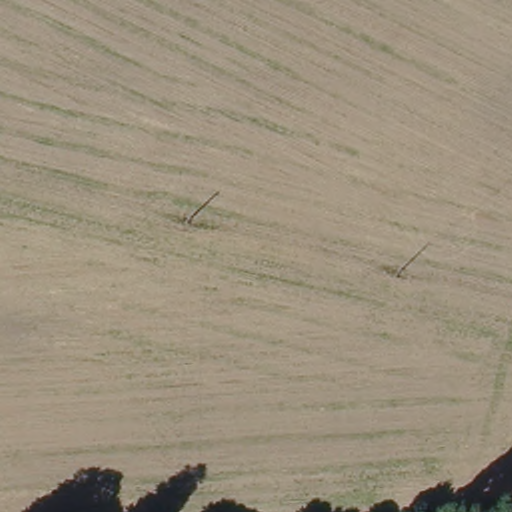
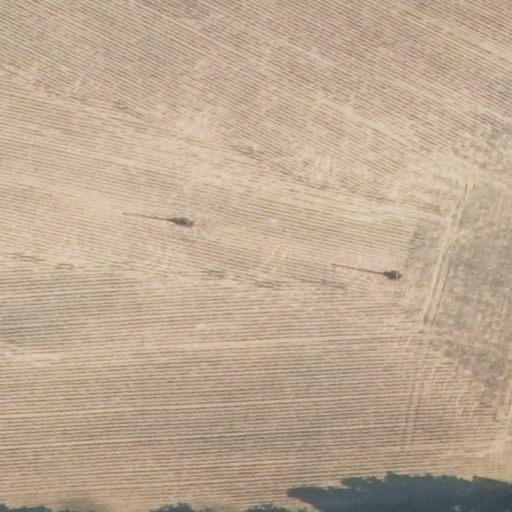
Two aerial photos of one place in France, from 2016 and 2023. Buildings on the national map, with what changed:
[]

